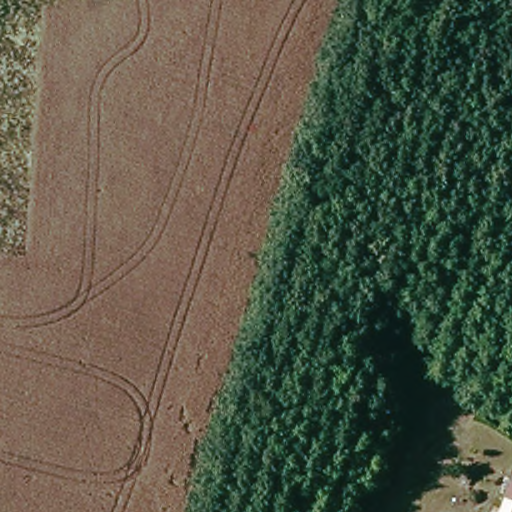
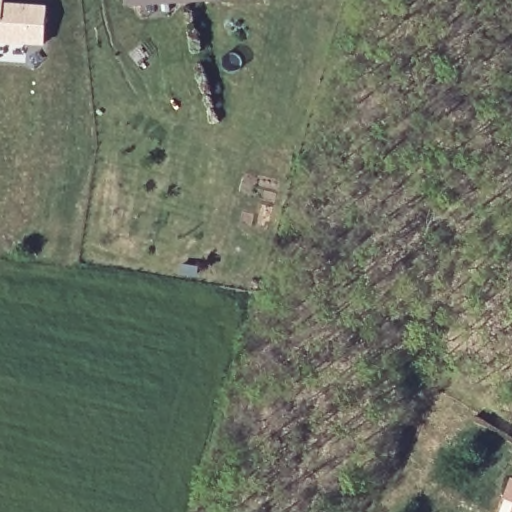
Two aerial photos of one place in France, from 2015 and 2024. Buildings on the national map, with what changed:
new [(5,1),(48,4),(45,46),(16,45),(0,43),(0,0),(5,0),(5,1)]
new [(124,6),(124,0),(199,0),(124,6)]
unchanged [(512,483),(512,507),(504,504),(512,483)]

